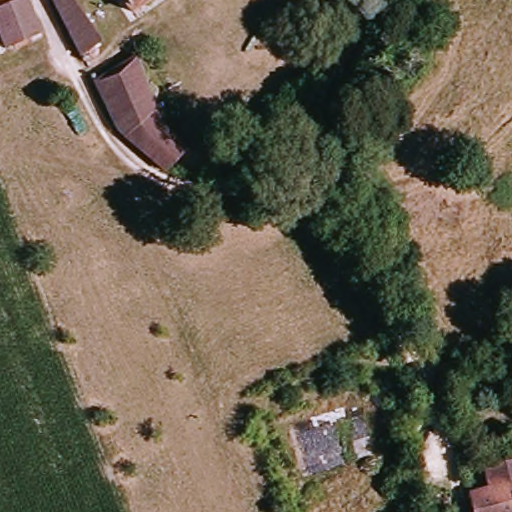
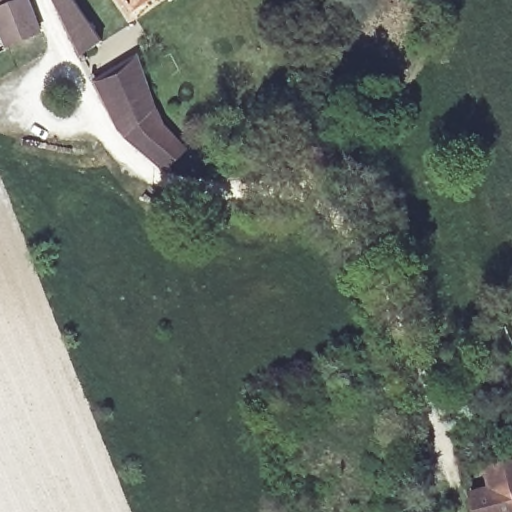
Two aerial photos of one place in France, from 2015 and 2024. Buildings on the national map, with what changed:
unchanged [(27,2),(0,16),(0,0),(26,0),(27,2)]
unchanged [(83,57),(55,0),(70,0),(97,50),(83,57)]
unchanged [(131,18),(120,0),(158,0),(131,18)]
unchanged [(10,53),(0,35),(0,16),(27,2),(37,40),(10,53)]
unchanged [(122,134),(98,83),(140,59),(160,117),(131,141),(122,134)]
unchanged [(160,117),(195,159),(178,176),(172,181),(131,141),(160,117)]
unchanged [(493,500),(488,475),(512,470),(512,512),(482,512),(480,502),(493,500)]

